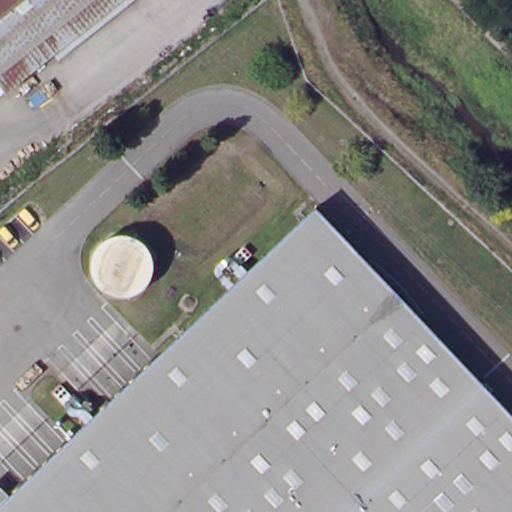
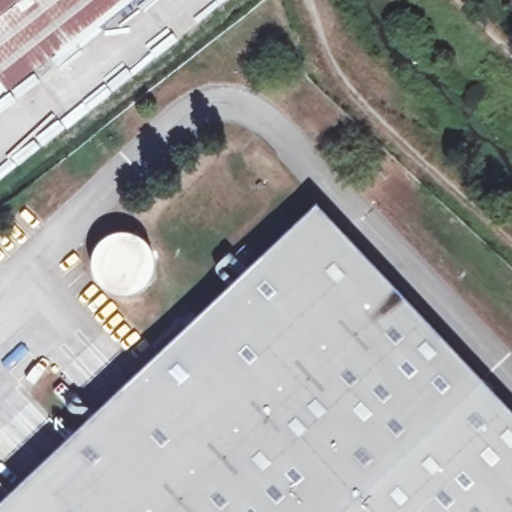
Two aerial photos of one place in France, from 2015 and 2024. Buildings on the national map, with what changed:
unchanged [(7,91),(0,82),(0,0),(121,0),(7,91)]
unchanged [(203,307),(318,200),(382,268),(512,407),(512,512),(0,512),(0,497),(203,307)]
unchanged [(133,234),(135,235),(137,236),(139,237),(141,238),(142,239),(144,241),(146,242),(147,244),(148,246),(150,248),(151,249),(152,251),(152,254),(153,256),(154,258),(154,260),(155,262),(155,264),(155,267),(154,269),(154,271),(153,273),(152,275),(152,277),(150,279),(150,281),(148,283),(147,284),(145,286),(144,288),(142,289),(140,290),(138,292),(137,292),(135,293),(132,294),(130,295),(128,295),(126,295),(124,296),(122,296),(120,295),(117,295),(115,295),(113,294),(111,293),(109,292),(107,291),(105,290),(103,289),(102,287),(100,286),(98,284),(97,282),(96,281),(95,279),(94,277),(93,275),(92,273),(92,270),(92,268),(92,266),(92,264),(92,262),(92,260),(92,257),(93,255),(93,253),(95,251),(95,249),(97,247),(97,245),(99,244),(100,242),(102,241),(104,239),(105,238),(107,237),(110,236),(112,235),(113,234),(115,233),(117,233),(120,233),(122,233),(125,233),(127,233),(128,233),(131,234),(133,234)]

